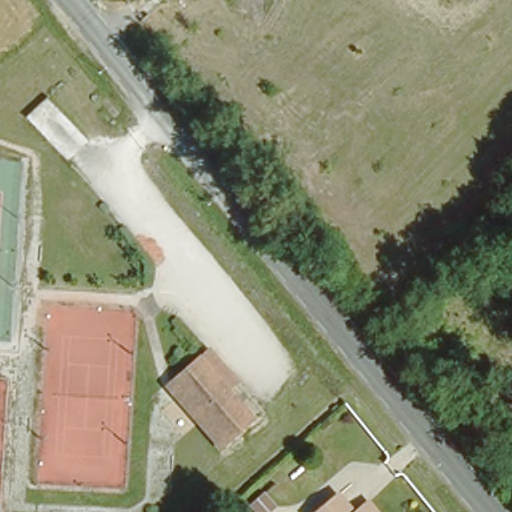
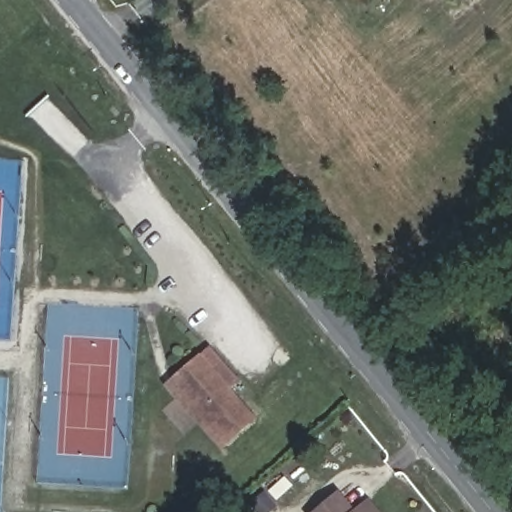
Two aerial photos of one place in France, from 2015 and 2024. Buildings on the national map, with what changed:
unchanged [(235,377),(225,388),(251,417),(224,441),(170,381),(208,349),(235,377)]
unchanged [(249,478),(268,497),(254,511),(236,493),(249,478)]
unchanged [(358,510),(369,501),(378,512),(319,512),(342,492),(358,510)]

